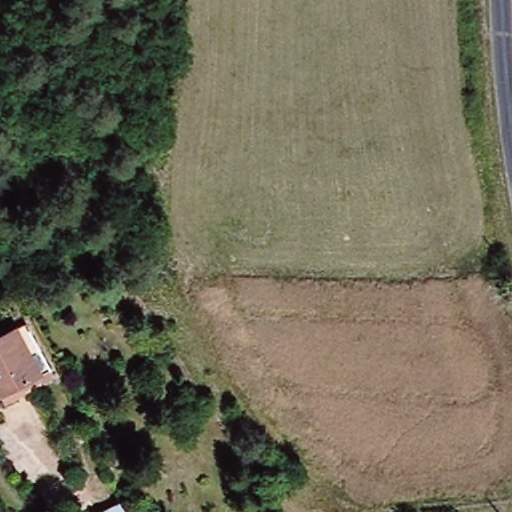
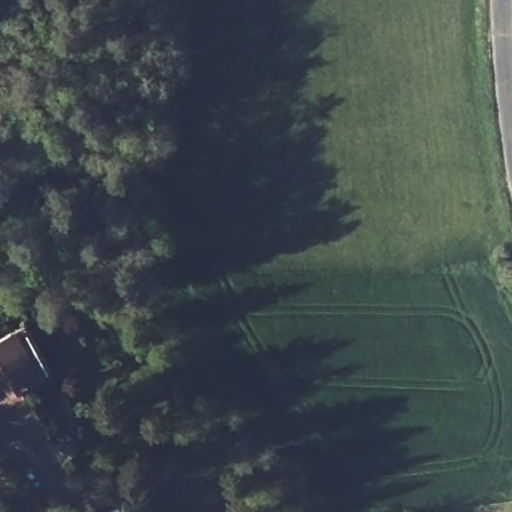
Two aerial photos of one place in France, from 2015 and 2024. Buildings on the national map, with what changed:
unchanged [(20,330),(47,378),(0,404),(0,341),(20,330)]
unchanged [(127,512),(104,512),(117,503),(127,512)]

